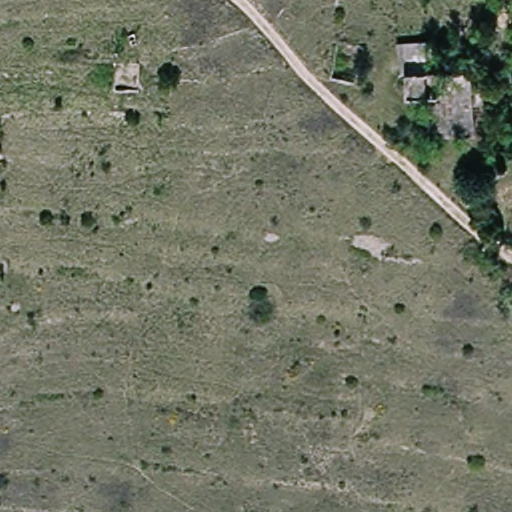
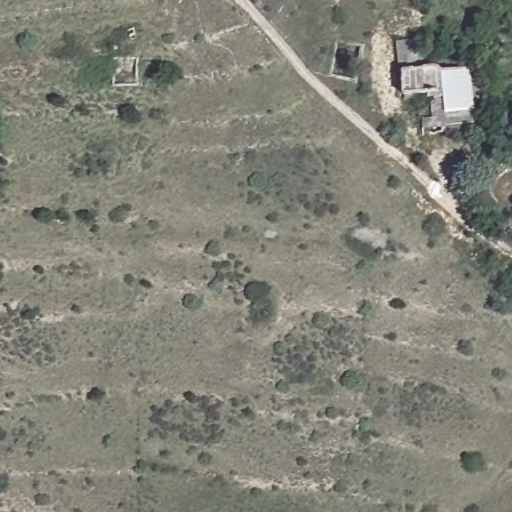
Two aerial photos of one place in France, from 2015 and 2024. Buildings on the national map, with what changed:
unchanged [(420,96),(404,98),(397,41),(442,32),(445,70),(472,65),(474,81),(490,80),(492,99),(475,99),(480,129),(427,134),(420,96)]

